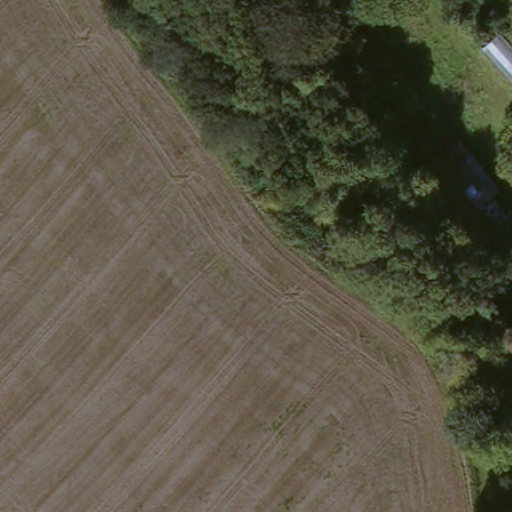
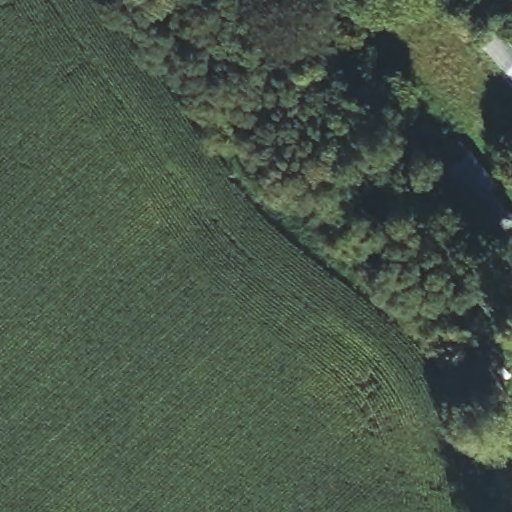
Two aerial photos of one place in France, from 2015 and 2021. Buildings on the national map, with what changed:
unchanged [(498,275),(420,171),(456,141),(498,192),(494,203),(512,225),(512,263),(498,275)]
unchanged [(503,407),(485,417),(459,371),(476,358),(503,407)]

